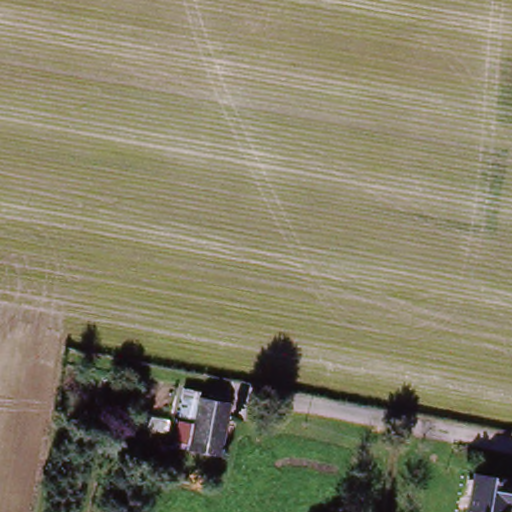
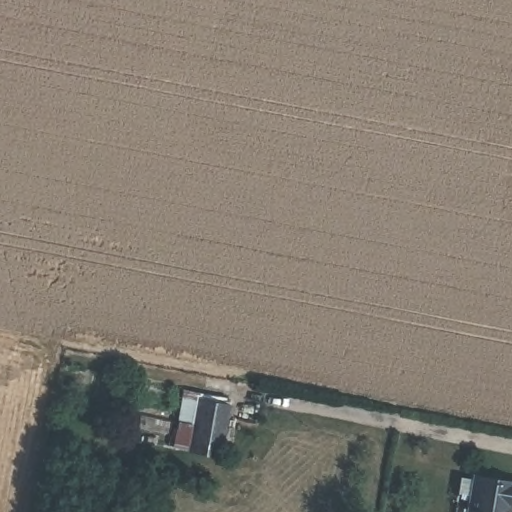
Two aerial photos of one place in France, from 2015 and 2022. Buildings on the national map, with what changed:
unchanged [(225,408),(220,457),(172,451),(175,427),(192,429),(194,402),(225,408)]
unchanged [(512,485),(512,511),(502,510),(501,512),(460,512),(465,477),(512,485)]

